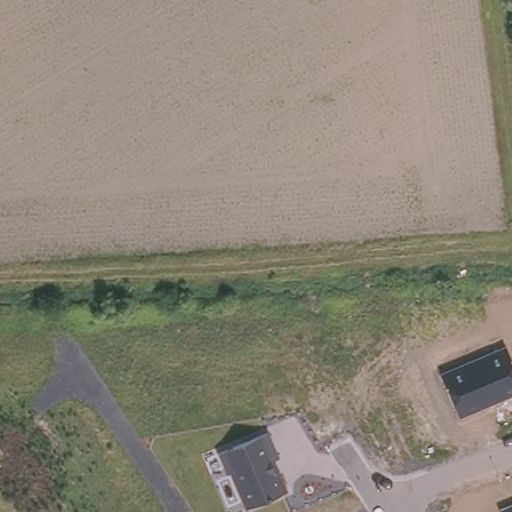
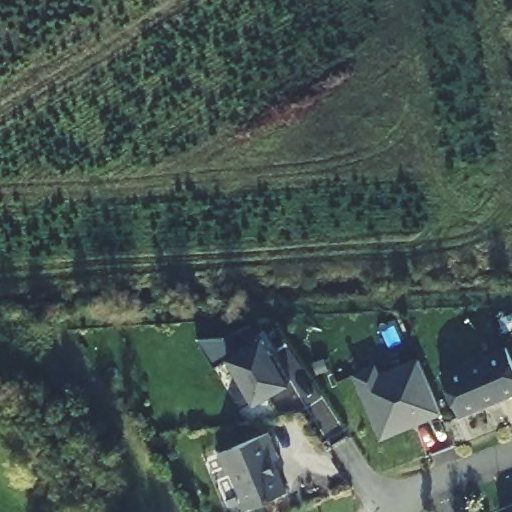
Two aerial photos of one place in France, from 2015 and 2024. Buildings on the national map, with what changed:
new [(258,332),(272,359),(276,357),(286,376),(252,396),(225,352),(258,332)]
unchanged [(460,417),(441,374),(506,347),(512,361),(512,396),(460,417)]
new [(355,372),(377,365),(380,372),(417,357),(442,413),(381,437),(355,372)]
unchanged [(230,473),(226,476),(217,455),(270,431),(280,457),(275,459),(287,492),(245,510),(230,473)]
unchanged [(499,508),(512,503),(512,512),(500,512),(499,508)]

